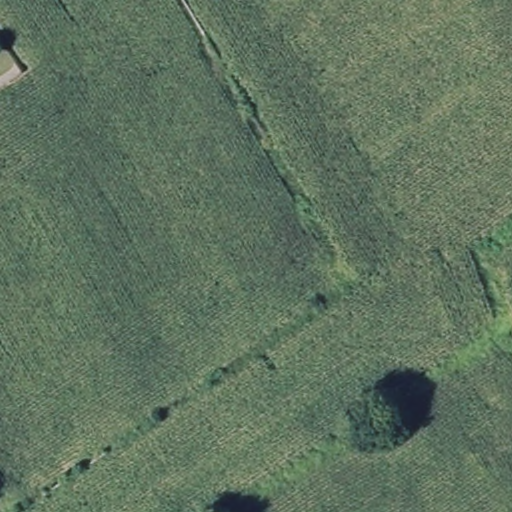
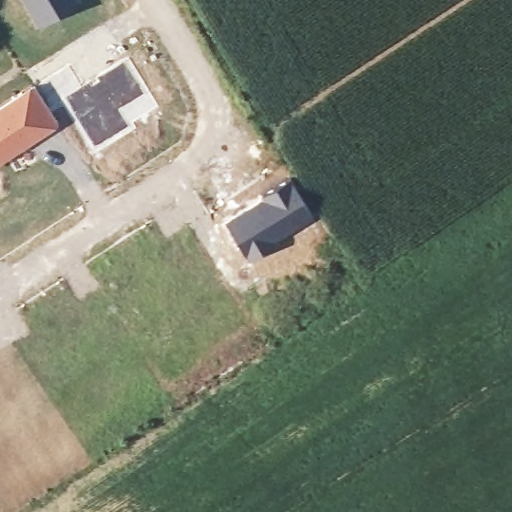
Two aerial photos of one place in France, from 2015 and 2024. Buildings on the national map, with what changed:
new [(79,2),(34,25),(20,0),(78,0),(79,2)]
new [(128,57),(156,106),(129,123),(130,125),(93,148),(60,97),(128,57)]
new [(59,125),(26,147),(0,162),(0,104),(31,83),(59,125)]
new [(290,177),(316,222),(247,260),(223,221),(290,177)]

